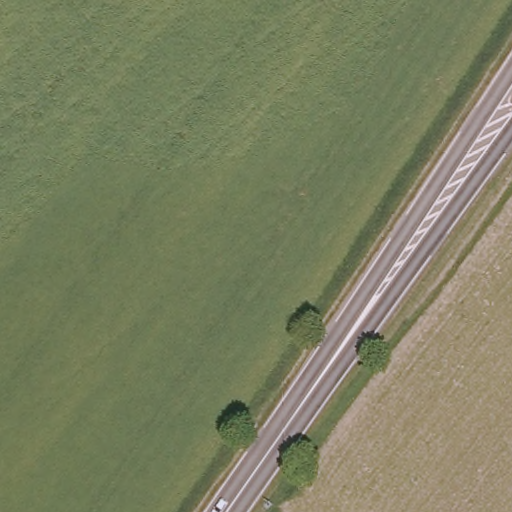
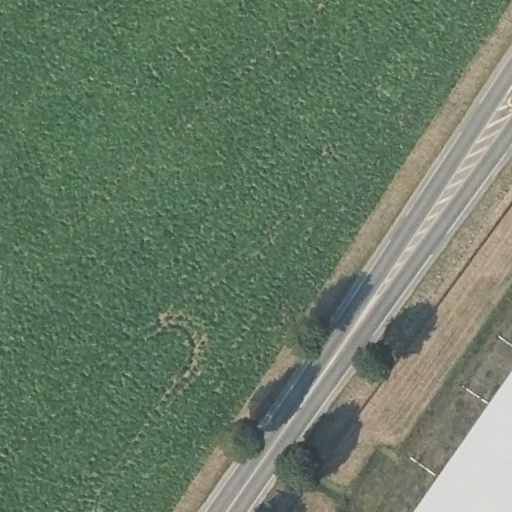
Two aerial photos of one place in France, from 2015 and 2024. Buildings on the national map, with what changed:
new [(420,512),(512,380),(512,512),(420,512)]

